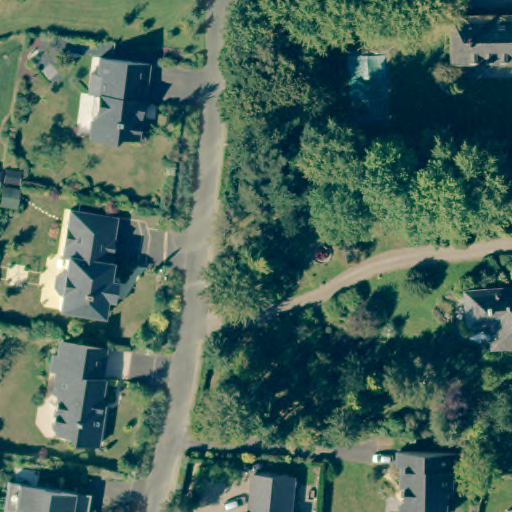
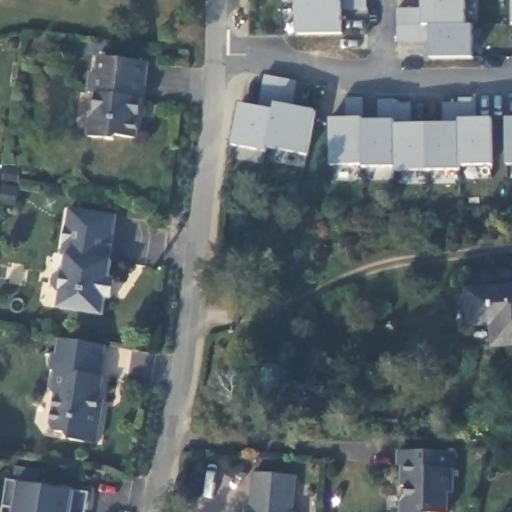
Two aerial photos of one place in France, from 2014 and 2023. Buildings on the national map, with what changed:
new [(367,12),(342,11),(343,36),(297,35),(295,0),(367,0),(367,12)]
new [(467,24),(473,24),(472,56),(428,55),(430,43),(397,42),(397,8),(422,10),(422,0),(465,0),(467,24)]
demolished [(512,62),(456,62),(455,18),(512,17),(512,62)]
unchanged [(147,99),(143,99),(141,116),(143,116),(141,139),(119,136),(117,140),(92,137),(95,117),(100,113),(102,94),(92,92),(94,73),(101,74),(103,57),(152,64),(147,99)]
new [(297,107),(317,112),(309,156),(267,147),(266,152),(233,145),(242,104),(260,107),(265,74),(301,82),(297,107)]
new [(478,119),(492,118),(493,167),(462,167),(461,172),(397,172),(397,167),(363,167),(363,165),(332,166),(332,119),(348,119),(347,98),(362,98),(364,118),(365,121),(379,119),(378,100),(394,99),(395,104),(410,104),(412,124),(445,124),(443,103),(460,103),(461,98),(477,98),(478,119)]
new [(507,118),(512,118),(512,166),(508,166),(507,118)]
unchanged [(111,266),(102,320),(57,313),(60,297),(57,296),(52,289),(54,281),(61,276),(63,276),(66,260),(61,259),(68,214),(89,217),(115,221),(112,236),(108,266),(111,266)]
unchanged [(487,326),(466,326),(463,291),(512,288),(512,345),(490,346),(487,326)]
unchanged [(99,381),(102,382),(97,413),(102,414),(96,449),(70,445),(65,438),(54,437),(51,431),(55,401),(51,395),(54,375),(48,375),(51,358),(56,359),(58,344),(67,345),(104,351),(99,381)]
unchanged [(453,472),(452,472),(452,496),(447,496),(446,512),(398,512),(398,504),(403,499),(403,490),(399,489),(400,454),(454,456),(453,472)]
unchanged [(79,495),(76,512),(7,512),(11,485),(79,495)]

